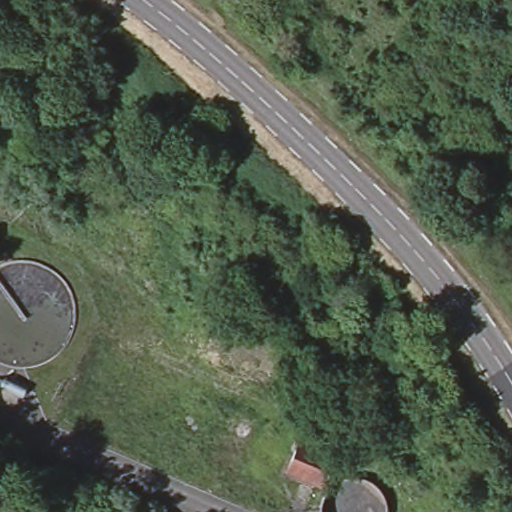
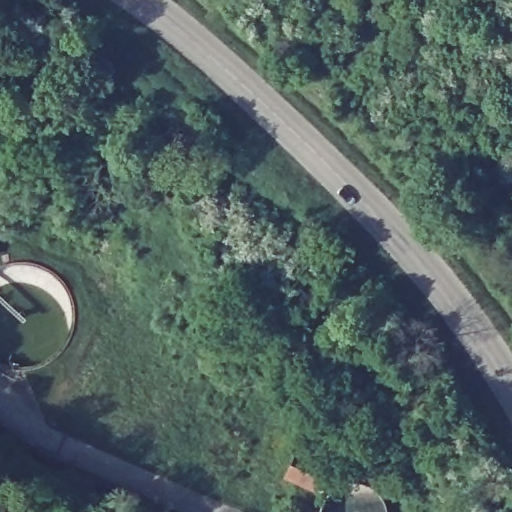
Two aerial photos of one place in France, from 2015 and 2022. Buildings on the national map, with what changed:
unchanged [(284,477),(299,443),(333,460),(319,492),(284,477)]

